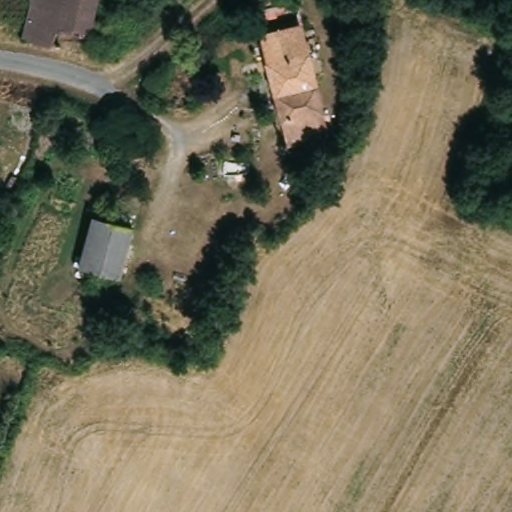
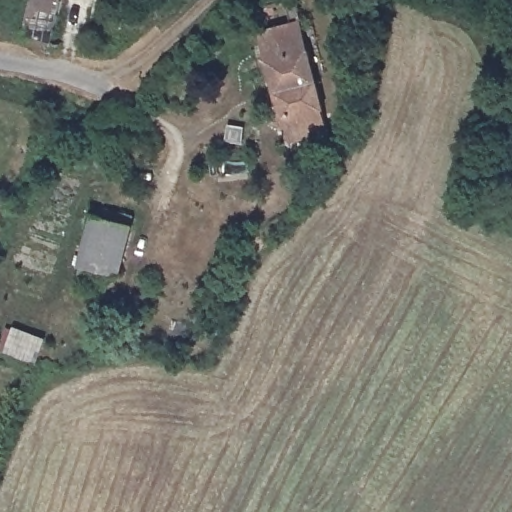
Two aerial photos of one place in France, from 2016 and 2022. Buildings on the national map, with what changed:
unchanged [(86,47),(22,32),(29,0),(96,0),(86,47)]
unchanged [(278,4),(300,0),(308,39),(310,65),(326,135),(284,145),(249,0),(278,0),(278,4)]
unchanged [(88,215),(126,224),(115,277),(75,269),(88,215)]

